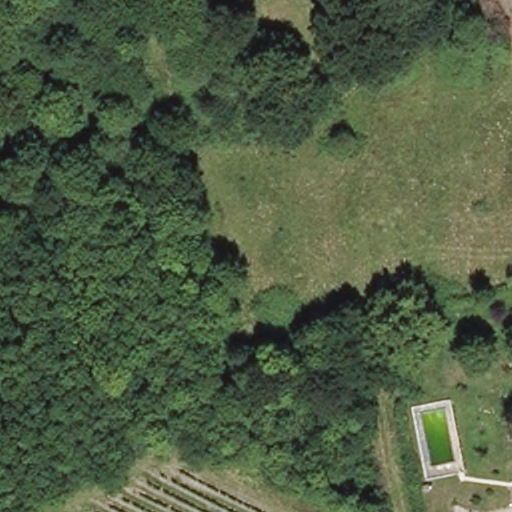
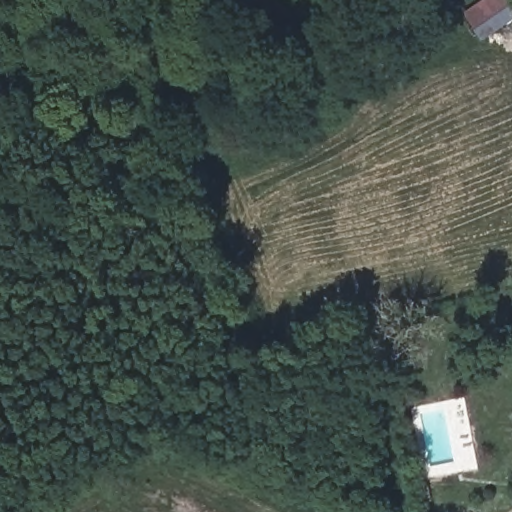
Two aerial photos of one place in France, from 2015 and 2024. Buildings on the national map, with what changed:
new [(484,37),(464,10),(481,0),(512,0),(512,20),(484,37)]

